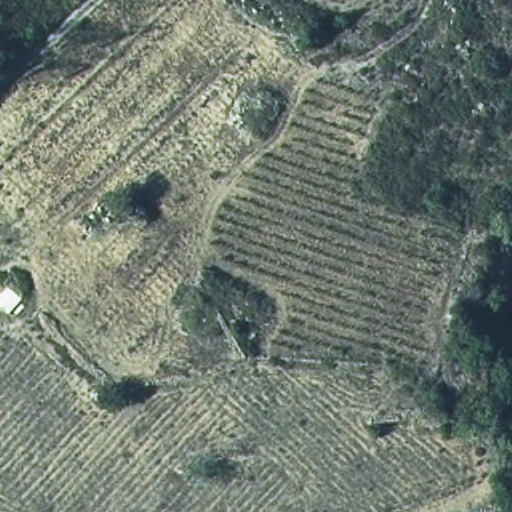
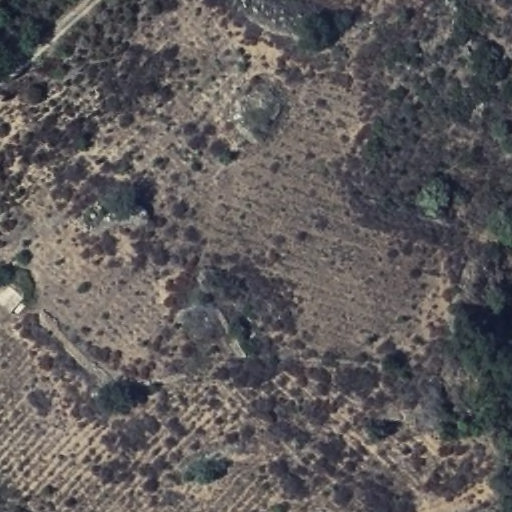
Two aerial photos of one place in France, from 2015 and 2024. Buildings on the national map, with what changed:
unchanged [(23,291),(9,307),(0,298),(0,290),(12,279),(23,291)]

